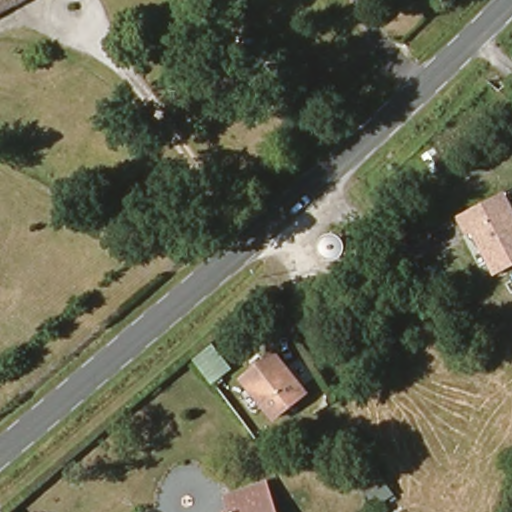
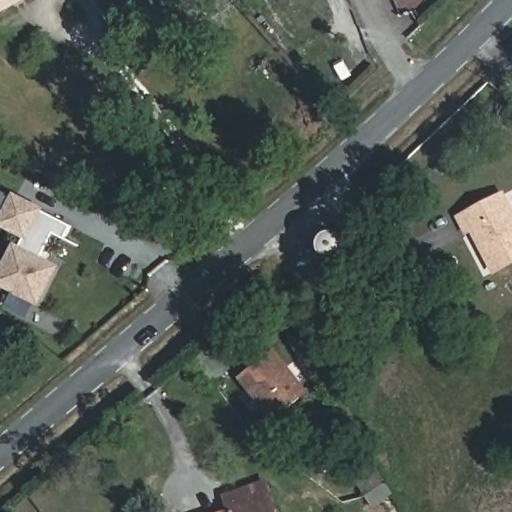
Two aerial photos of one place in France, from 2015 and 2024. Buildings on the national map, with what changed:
unchanged [(0,13),(0,0),(24,0),(0,13)]
unchanged [(401,183),(389,169),(405,155),(418,169),(401,183)]
unchanged [(512,261),(496,269),(475,226),(470,229),(462,215),(505,192),(512,205),(512,261)]
new [(40,306),(0,286),(0,272),(15,242),(22,245),(25,240),(0,227),(0,222),(15,193),(46,208),(45,211),(74,226),(66,239),(55,234),(43,257),(60,266),(40,306)]
unchanged [(230,367),(212,382),(195,363),(214,346),(230,367)]
unchanged [(310,393),(275,418),(245,379),(280,353),(310,393)]
unchanged [(356,479),(375,466),(395,495),(375,507),(356,479)]
unchanged [(225,495),(265,482),(275,512),(229,512),(231,511),(225,495)]

